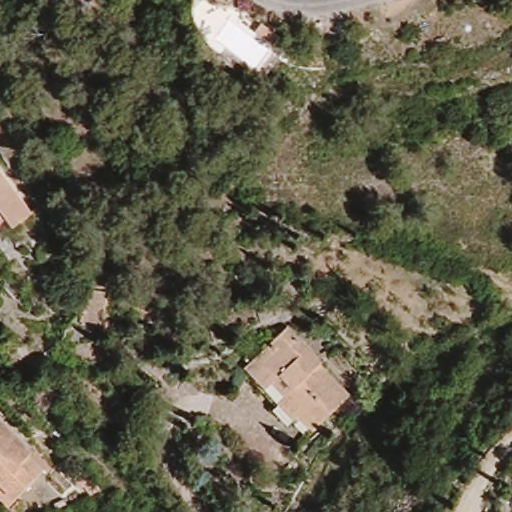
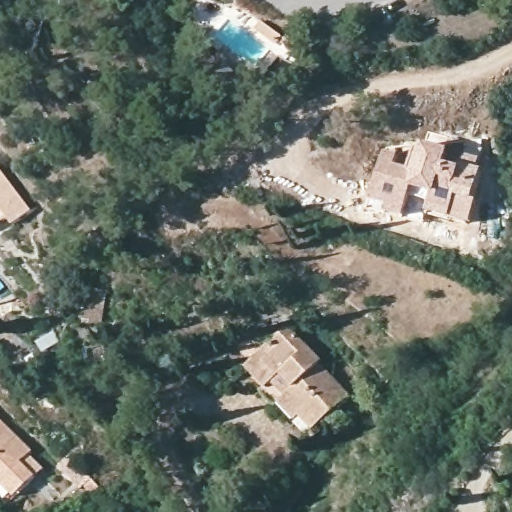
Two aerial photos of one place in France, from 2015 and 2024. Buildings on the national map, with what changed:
unchanged [(279,44),(257,28),(262,21),(284,36),(279,44)]
new [(413,156),(416,149),(421,150),(424,144),(448,150),(445,165),(459,168),(460,165),(483,170),(468,225),(428,214),(431,195),(411,190),(404,220),(385,215),(386,207),(372,202),(385,152),(413,156)]
unchanged [(13,231),(7,222),(0,228),(0,175),(32,217),(13,231)]
unchanged [(85,335),(85,330),(76,330),(77,323),(88,300),(103,303),(101,321),(99,335),(85,335)]
unchanged [(327,367),(324,370),(354,401),(312,440),(282,410),(281,411),(267,397),(270,395),(249,373),(256,367),(292,332),(327,367)]
unchanged [(15,503),(0,489),(0,426),(32,457),(30,460),(44,473),(35,482),(15,503)]

